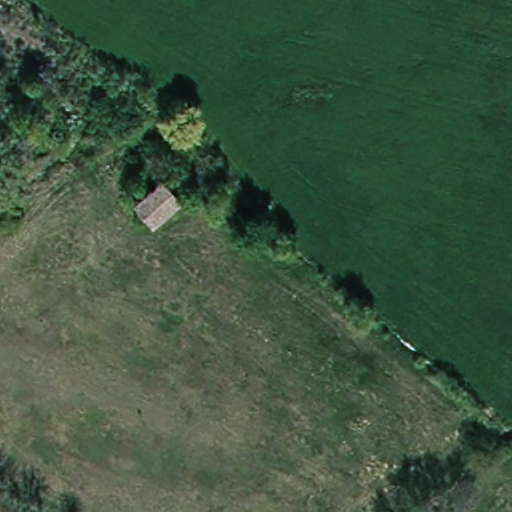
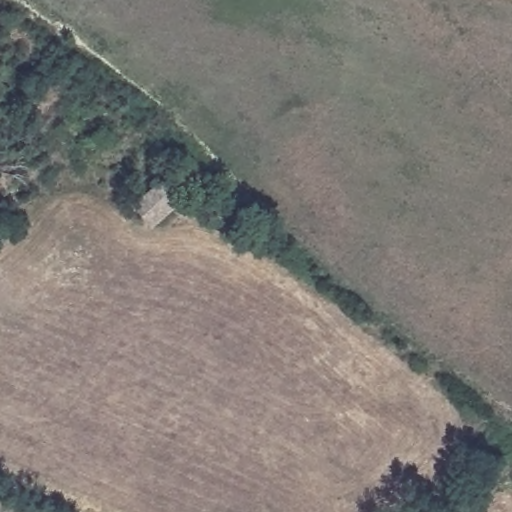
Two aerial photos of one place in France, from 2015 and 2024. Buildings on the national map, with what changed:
unchanged [(143,199),(170,186),(183,204),(155,218),(143,199)]

